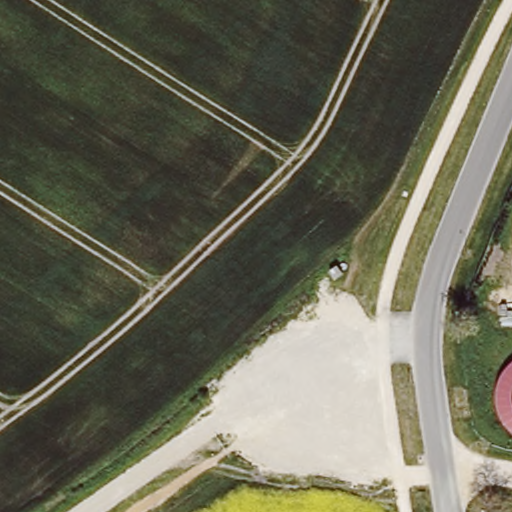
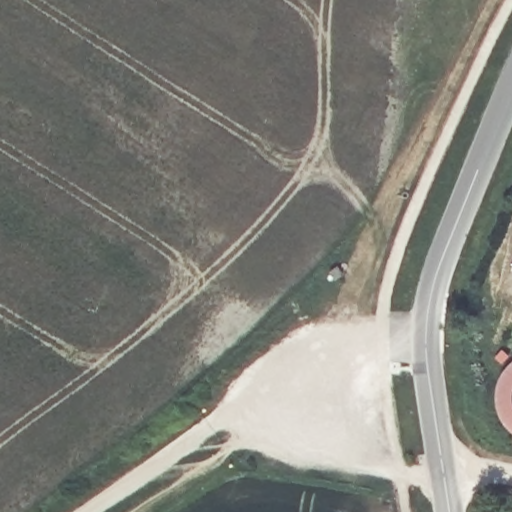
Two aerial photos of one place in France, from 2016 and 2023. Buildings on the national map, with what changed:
unchanged [(512,361),(512,387),(511,399),(512,404),(512,433),(509,431),(500,421),(497,410),(495,397),(497,383),(501,373),(510,362),(512,361)]

